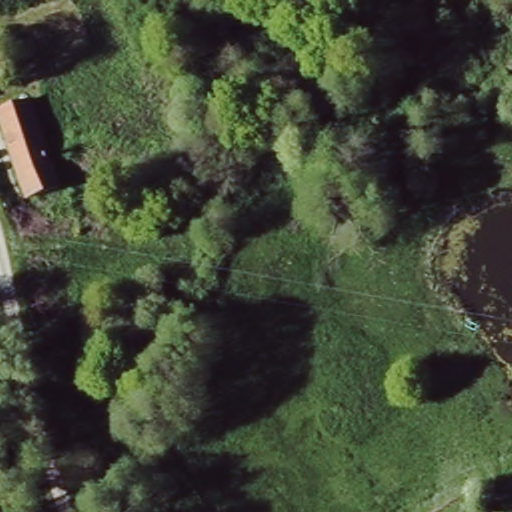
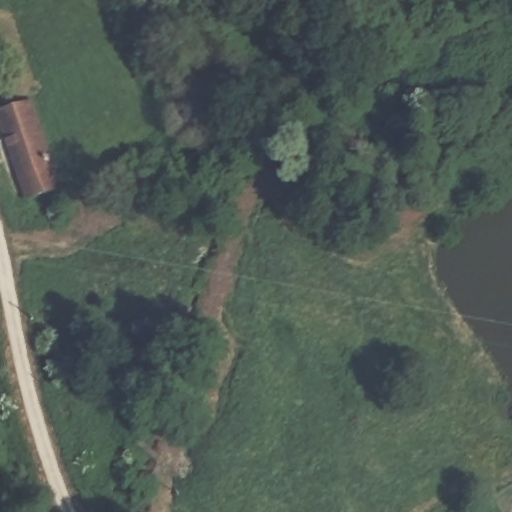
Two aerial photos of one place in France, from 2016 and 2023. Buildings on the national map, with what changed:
unchanged [(20,207),(1,111),(32,102),(52,199),(20,207)]

